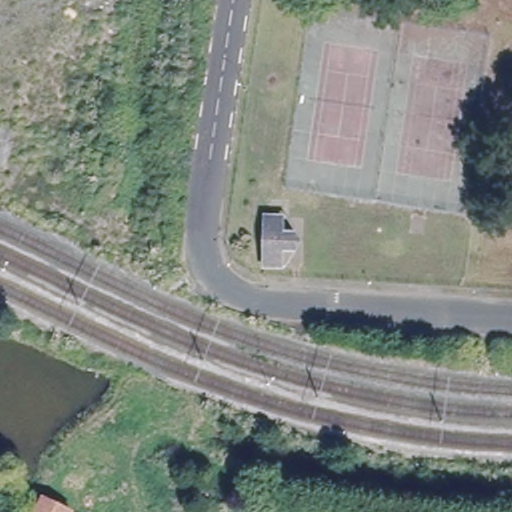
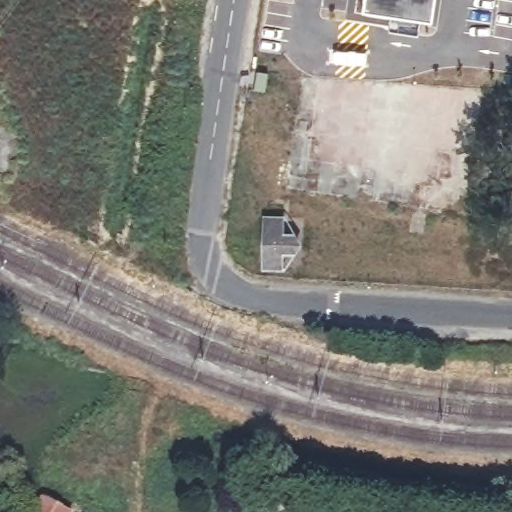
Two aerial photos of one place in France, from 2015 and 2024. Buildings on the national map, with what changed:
new [(435,0),(431,21),(419,19),(417,25),(359,12),(361,0),(435,0)]
unchanged [(257,211),(282,211),(282,221),(292,221),(301,233),(293,246),(282,245),(281,259),(257,257),(257,211)]
unchanged [(40,497),(65,512),(32,512),(40,497)]

